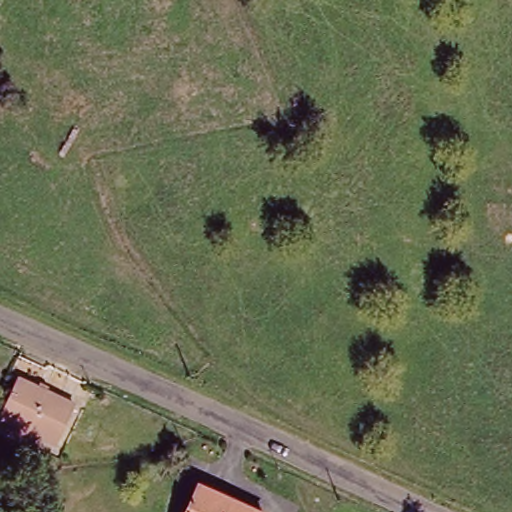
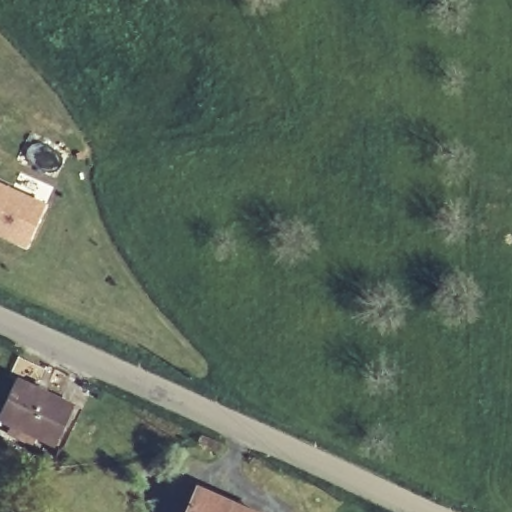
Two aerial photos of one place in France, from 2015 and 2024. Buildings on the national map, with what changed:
new [(25,247),(0,236),(0,182),(45,202),(25,247)]
unchanged [(13,423),(0,417),(0,411),(17,378),(70,404),(53,442),(39,436),(33,448),(7,435),(13,423)]
unchanged [(254,512),(184,512),(198,485),(254,512)]

